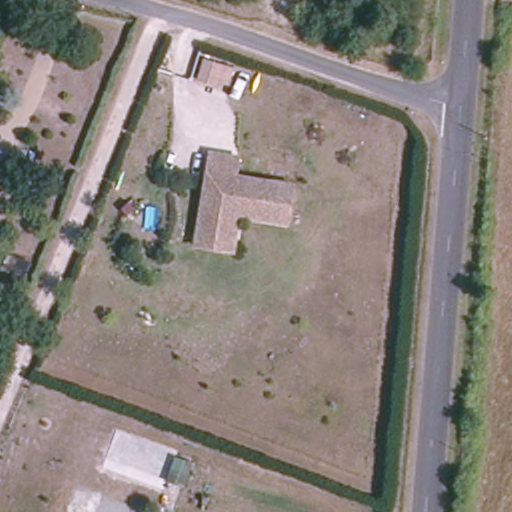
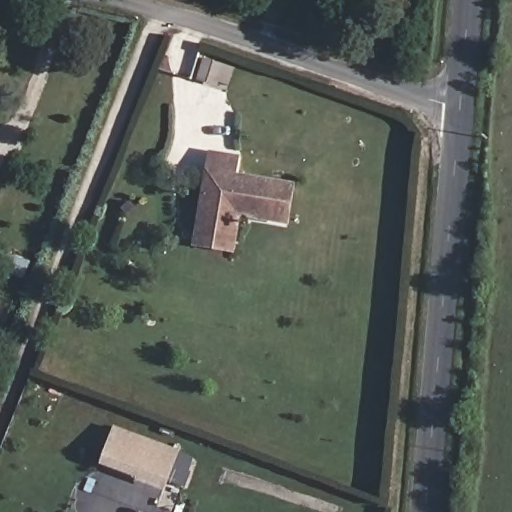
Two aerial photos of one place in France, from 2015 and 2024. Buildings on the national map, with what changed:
unchanged [(195,247),(196,230),(197,230),(209,151),(238,155),(236,176),(293,186),(289,225),(237,216),(234,251),(195,247)]
new [(112,425),(180,450),(166,490),(99,465),(112,425)]

